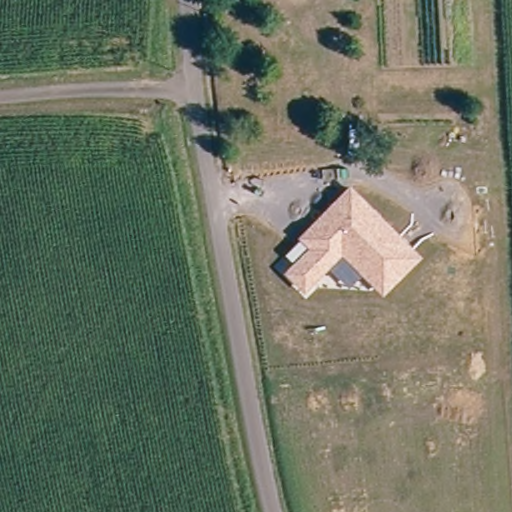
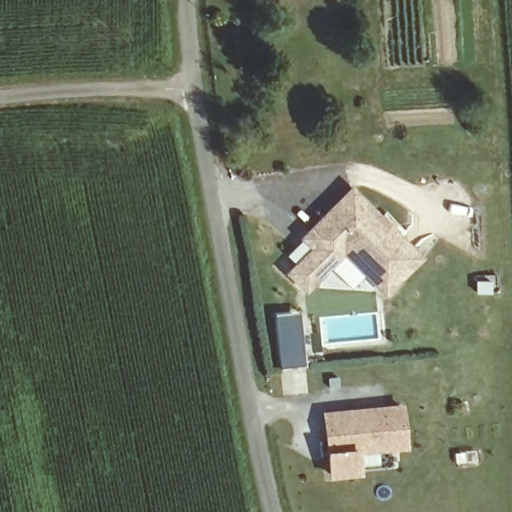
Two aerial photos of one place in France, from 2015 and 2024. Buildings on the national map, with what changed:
unchanged [(285,272),(293,262),(285,255),(301,240),(298,238),(350,185),(423,256),(383,296),(362,275),(351,287),(330,269),(305,292),(285,272)]
new [(274,315),(300,313),(304,365),(278,367),(274,315)]
new [(404,405),(408,450),(360,455),(362,476),(329,480),(326,452),(322,413),(404,405)]

